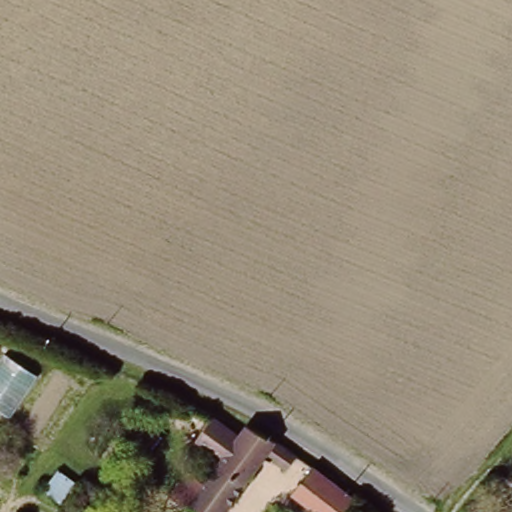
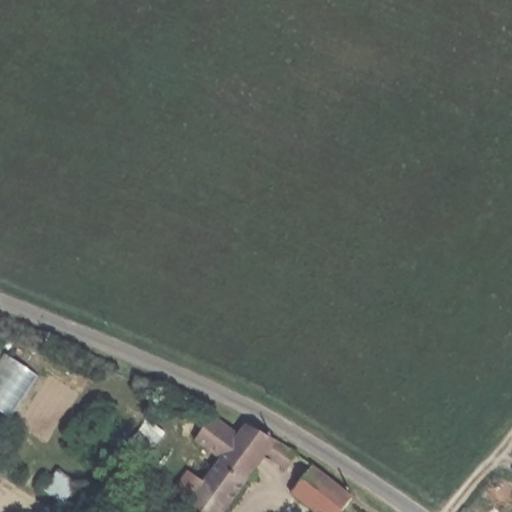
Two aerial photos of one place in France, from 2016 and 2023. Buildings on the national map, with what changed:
unchanged [(265,450),(220,512),(195,512),(172,496),(188,474),(202,484),(223,453),(197,436),(215,410),(242,429),(247,421),(288,444),(297,450),(286,465),(265,450)]
unchanged [(343,512),(314,512),(292,495),(314,467),(355,496),(343,512)]

